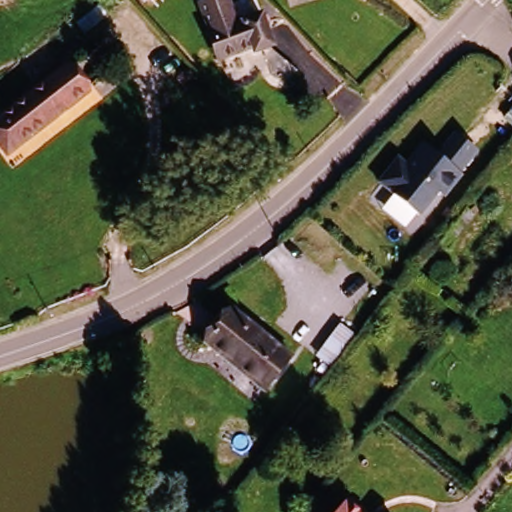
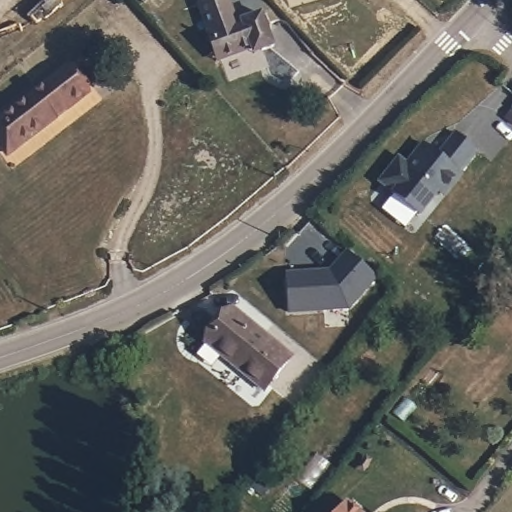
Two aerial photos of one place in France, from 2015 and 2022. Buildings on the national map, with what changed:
unchanged [(258,12),(269,44),(249,51),(248,46),(216,57),(196,2),(201,0),(224,0),(232,21),(258,12)]
unchanged [(0,144),(0,117),(67,64),(88,90),(20,143),(7,153),(0,144)]
unchanged [(458,174),(459,175),(443,196),(437,192),(418,215),(377,182),(397,158),(406,165),(422,145),(428,149),(437,157),(454,134),(476,152),(458,174)]
new [(319,271),(319,274),(326,274),(346,251),(376,278),(349,309),(288,312),(284,274),(319,271)]
unchanged [(288,359),(261,394),(201,346),(229,311),(288,359)]
unchanged [(339,512),(343,507),(348,512),(339,512)]

